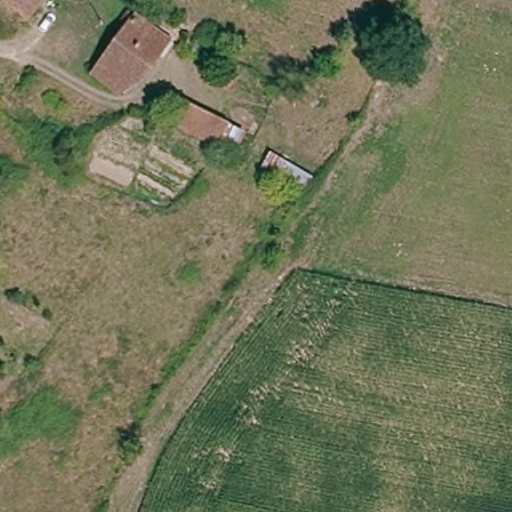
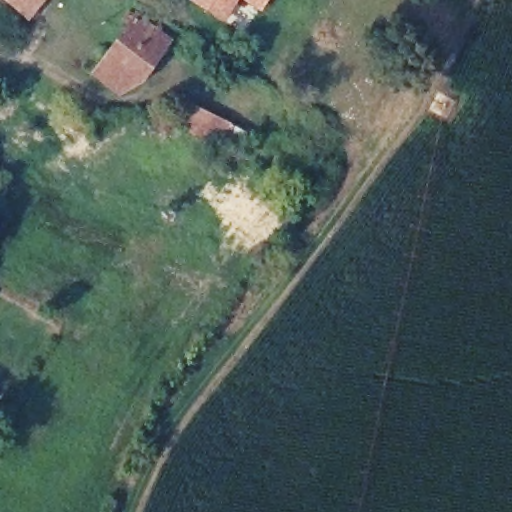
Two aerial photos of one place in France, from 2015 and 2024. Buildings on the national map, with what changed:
unchanged [(6,0),(48,0),(31,21),(6,0)]
new [(225,23),(190,1),(190,0),(270,0),(262,13),(241,0),(225,23)]
unchanged [(173,37),(146,78),(121,90),(100,72),(142,12),(173,37)]
unchanged [(254,138),(257,140),(249,156),(227,146),(181,124),(194,101),(238,123),(236,126),(255,135),(254,138)]
unchanged [(288,163),(279,177),(261,169),(270,154),(288,163)]

